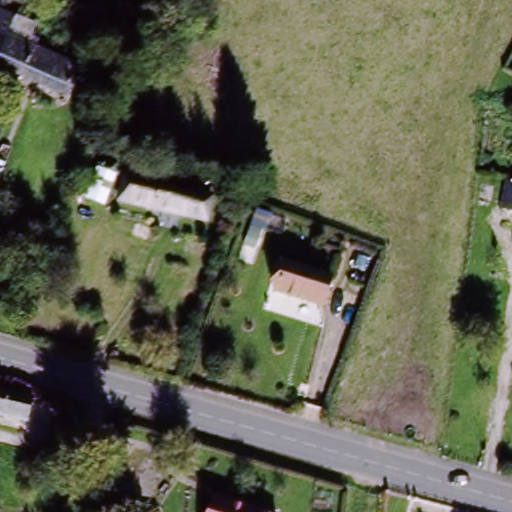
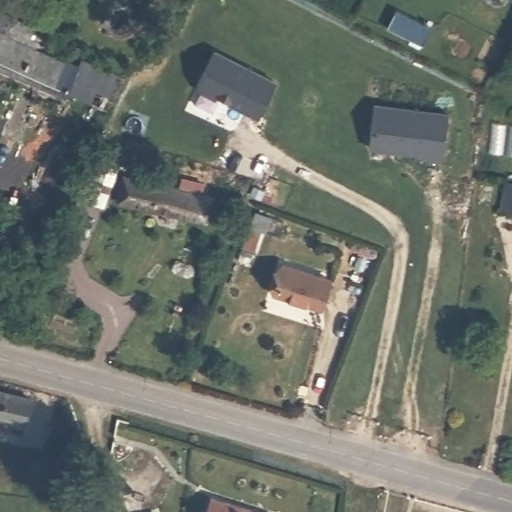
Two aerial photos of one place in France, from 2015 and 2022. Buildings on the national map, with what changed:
new [(394,10),(430,28),(421,46),(385,28),(394,10)]
unchanged [(0,63),(0,33),(11,38),(0,63)]
unchanged [(63,60),(52,88),(0,67),(0,63),(11,38),(63,60)]
new [(278,81),(257,118),(196,88),(215,50),(278,81)]
new [(448,112),(443,160),(426,159),(427,155),(370,149),(375,104),(448,112)]
unchanged [(200,199),(191,226),(115,199),(123,172),(200,199)]
unchanged [(512,217),(501,215),(505,185),(512,186),(512,217)]
unchanged [(328,280),(318,309),(301,305),(303,300),(271,291),(280,265),(328,280)]
unchanged [(16,421),(0,417),(0,387),(23,393),(16,421)]
unchanged [(259,512),(203,512),(207,500),(259,512)]

